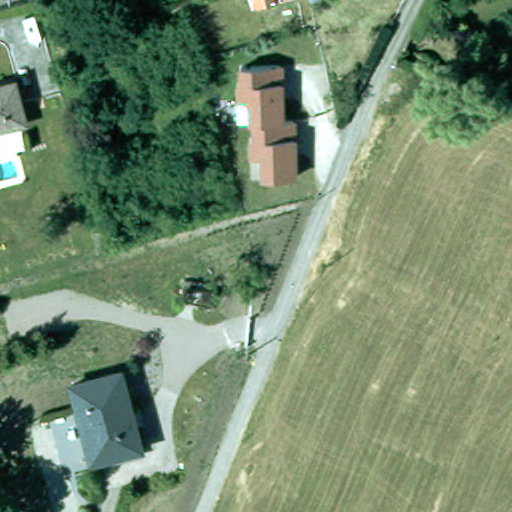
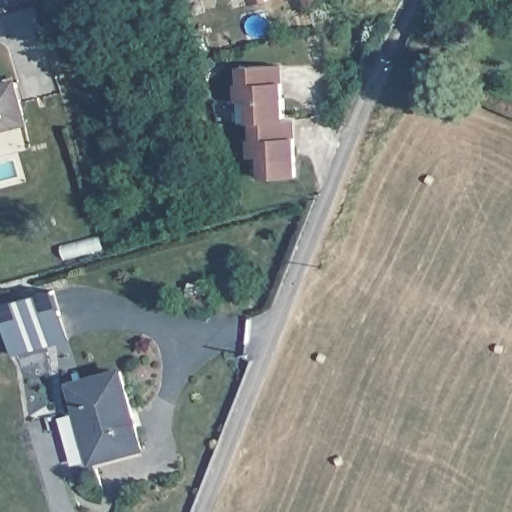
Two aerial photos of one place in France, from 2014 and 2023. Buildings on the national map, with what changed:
unchanged [(285,121),(299,123),(299,185),(262,185),(260,159),(249,158),(247,101),(240,101),(238,86),(243,85),(243,68),(277,68),(277,81),(287,83),(285,121)]
unchanged [(0,85),(15,81),(27,122),(0,130),(0,85)]
new [(55,297),(62,321),(9,336),(2,312),(55,297)]
new [(62,321),(69,345),(16,360),(9,336),(62,321)]
unchanged [(87,433),(72,384),(119,373),(135,420),(87,433)]
unchanged [(143,445),(95,461),(87,433),(135,420),(143,445)]

